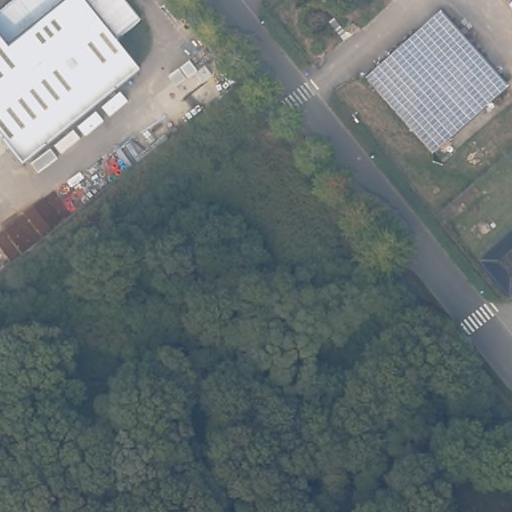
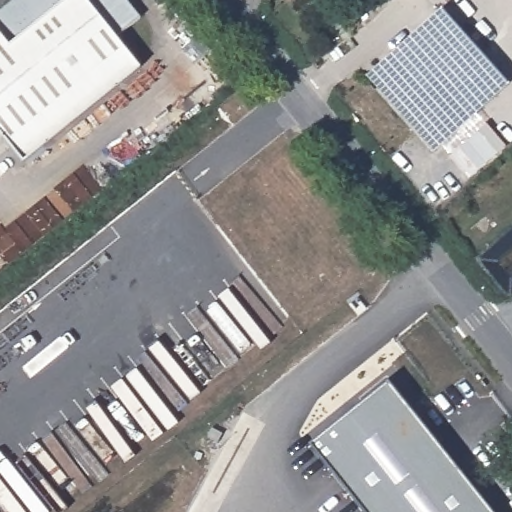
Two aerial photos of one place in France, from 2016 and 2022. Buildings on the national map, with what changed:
unchanged [(126,0),(139,17),(115,36),(139,66),(21,161),(0,134),(0,9),(11,0),(126,0)]
unchanged [(508,86),(433,152),(367,77),(441,9),(508,86)]
new [(309,444),(386,382),(492,512),(364,512),(309,444)]

